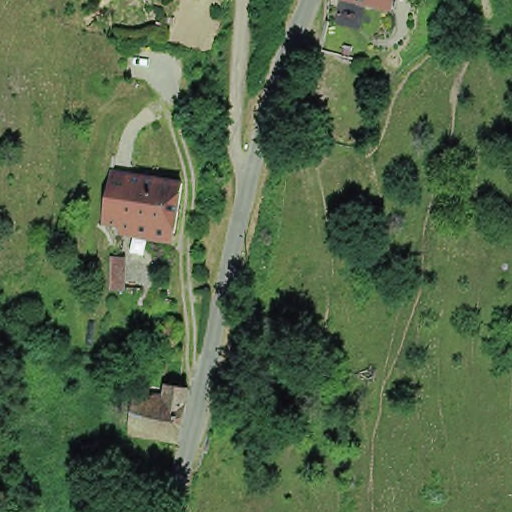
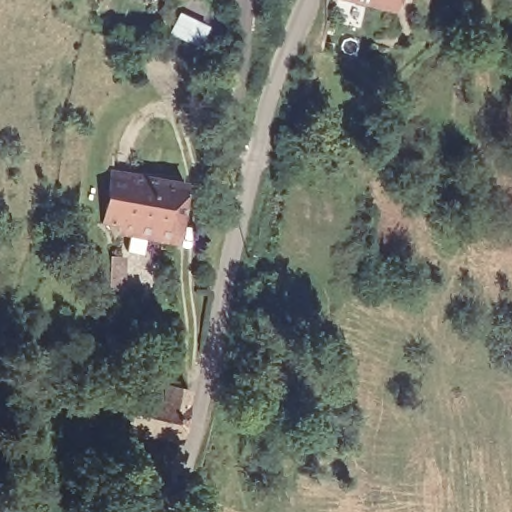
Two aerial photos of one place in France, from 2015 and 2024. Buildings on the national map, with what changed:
unchanged [(356,9),(348,7),(349,0),(395,0),(393,9),(358,1),(356,9)]
unchanged [(171,239),(116,230),(123,180),(178,189),(171,239)]
unchanged [(173,352),(156,348),(161,324),(178,328),(173,352)]
unchanged [(250,404),(238,404),(240,384),(251,384),(250,404)]
unchanged [(181,443),(159,439),(166,403),(168,387),(189,391),(181,443)]
unchanged [(159,439),(128,434),(135,399),(166,403),(159,439)]

